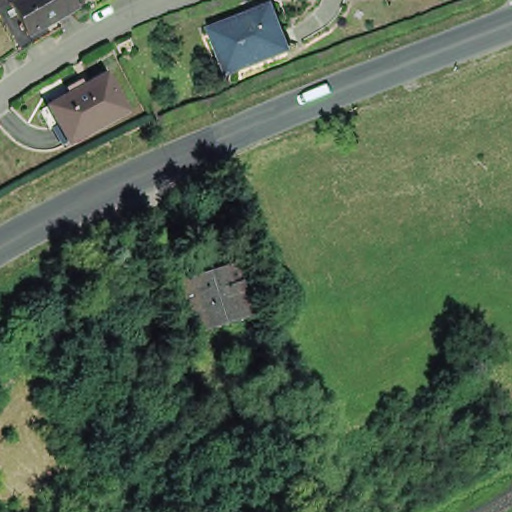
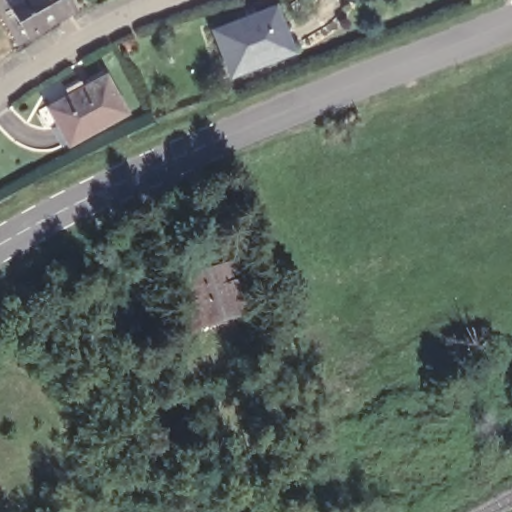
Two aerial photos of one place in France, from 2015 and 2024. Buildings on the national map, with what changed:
unchanged [(9,3),(14,0),(70,0),(75,9),(27,36),(9,3)]
unchanged [(231,74),(215,31),(274,8),(291,50),(231,74)]
unchanged [(53,111),(75,99),(71,92),(84,85),(87,91),(109,79),(130,116),(73,148),(63,129),(54,133),(45,115),(53,111)]
unchanged [(239,267),(252,313),(195,332),(181,286),(239,267)]

